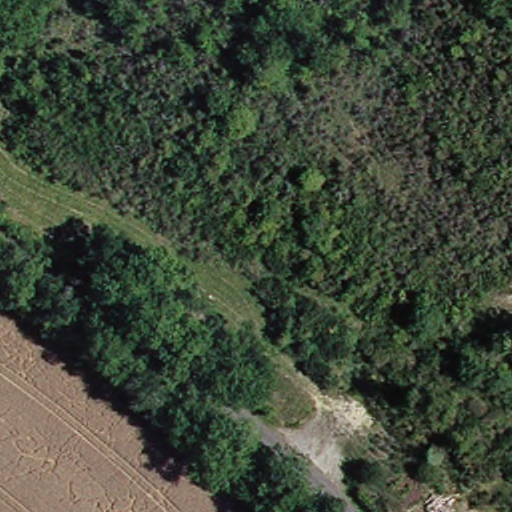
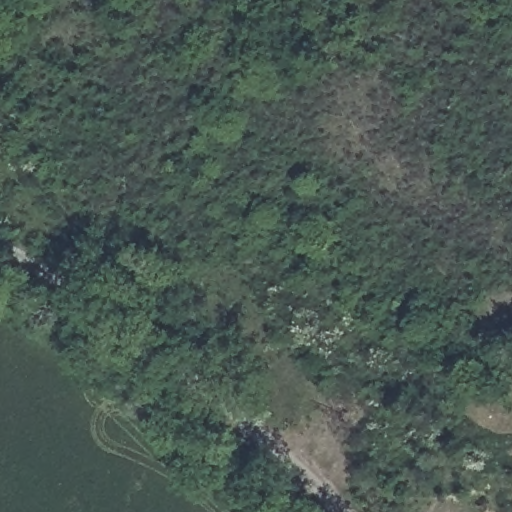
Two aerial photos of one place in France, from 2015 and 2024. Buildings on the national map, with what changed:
unchanged [(287,378),(320,408),(302,426),(272,397),(287,378)]

